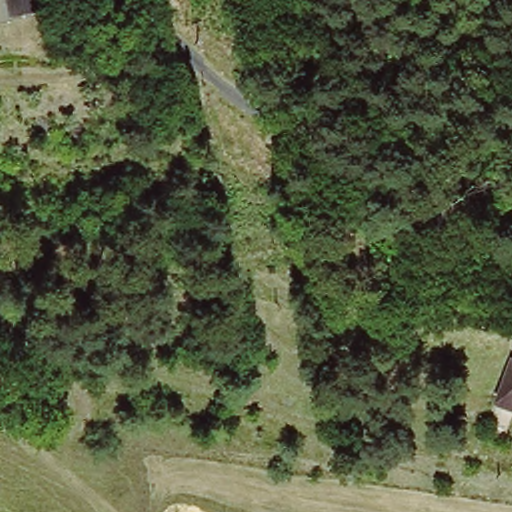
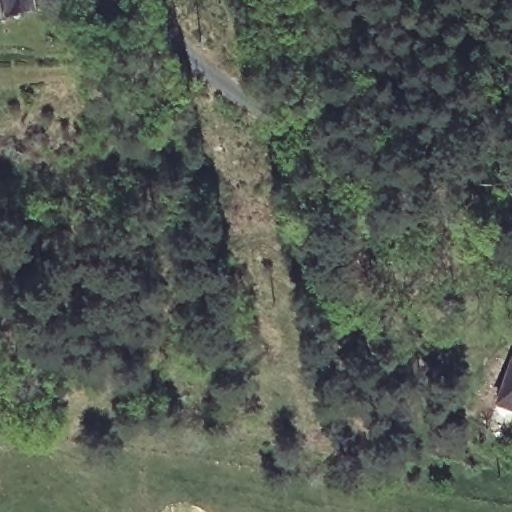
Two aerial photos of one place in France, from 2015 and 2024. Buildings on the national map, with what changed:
unchanged [(21,10),(0,14),(0,0),(19,0),(21,10)]
unchanged [(512,375),(512,402),(502,397),(512,375)]

